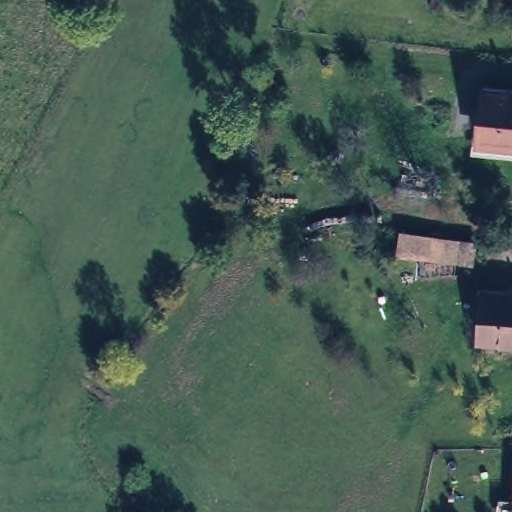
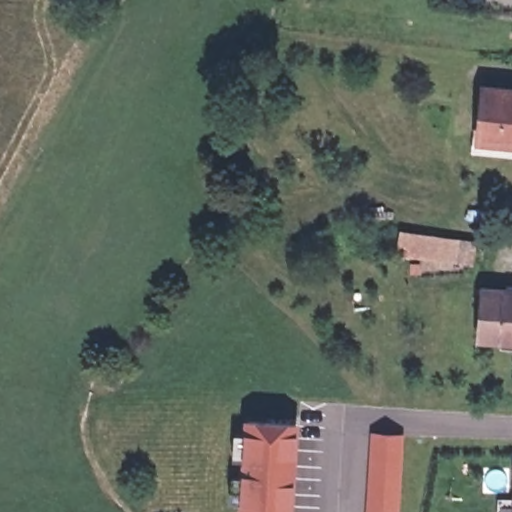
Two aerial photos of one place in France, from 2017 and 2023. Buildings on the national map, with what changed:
unchanged [(471,86),(512,90),(512,154),(466,150),(471,86)]
unchanged [(472,236),(468,269),(392,260),(395,226),(472,236)]
unchanged [(512,345),(482,342),(488,291),(512,293),(512,345)]
new [(247,416),(296,419),(293,462),(292,482),(290,512),(242,512),(243,479),(245,459),(247,416)]
new [(401,436),(397,512),(367,512),(372,435),(401,436)]

